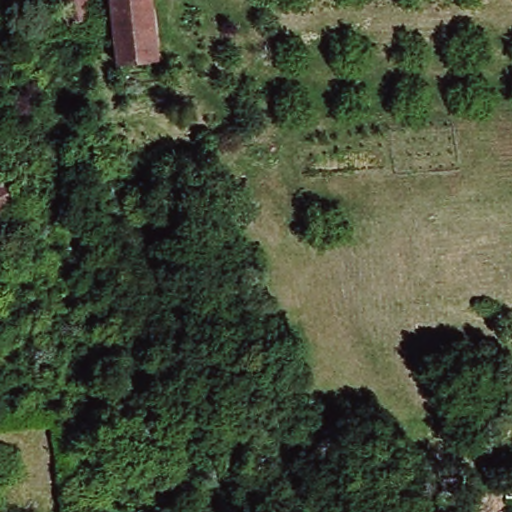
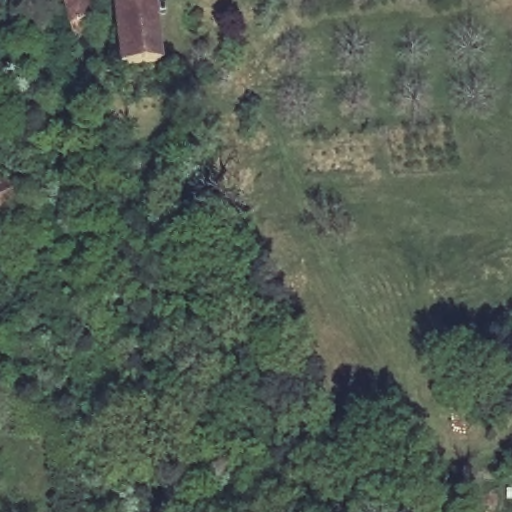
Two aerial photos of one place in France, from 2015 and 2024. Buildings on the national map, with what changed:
unchanged [(77,0),(95,0),(105,22),(97,25),(102,40),(86,45),(68,2),(77,0)]
unchanged [(114,0),(154,0),(163,67),(124,69),(114,0)]
unchanged [(30,204),(0,221),(0,185),(14,177),(30,204)]

